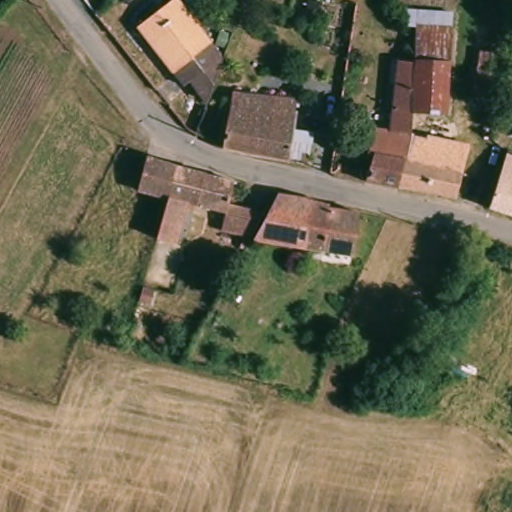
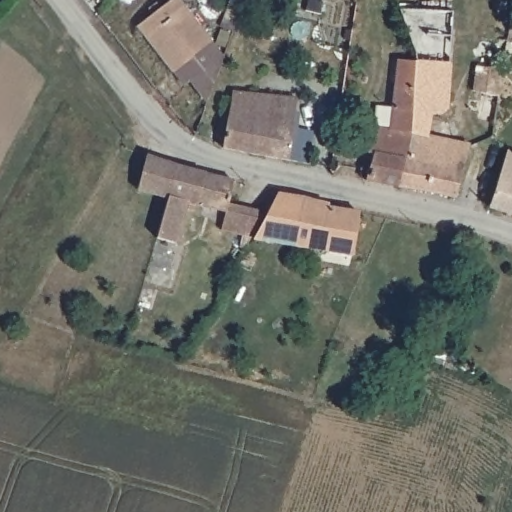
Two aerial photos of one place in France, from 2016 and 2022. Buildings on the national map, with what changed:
unchanged [(140,26),(171,0),(179,0),(222,55),(187,85),(140,26)]
unchanged [(458,6),(447,115),(434,110),(433,137),(471,144),(458,202),(368,178),(375,129),(388,129),(392,85),(413,87),(417,9),(458,6)]
unchanged [(484,119),(486,97),(480,96),(486,48),(508,51),(498,120),(484,119)]
unchanged [(320,100),(316,160),(249,150),(221,142),(234,87),(320,100)]
unchanged [(512,216),(490,209),(510,147),(512,148),(512,216)]
unchanged [(137,188),(145,154),(174,162),(166,196),(137,188)]
unchanged [(177,162),(222,176),(234,179),(230,201),(268,212),(256,235),(255,237),(247,251),(240,249),(243,236),(222,232),(226,212),(194,204),(192,211),(184,208),(175,238),(156,232),(166,196),(174,162),(177,162)]
unchanged [(256,235),(268,212),(279,192),(285,194),(360,210),(354,257),(255,237),(256,235)]

